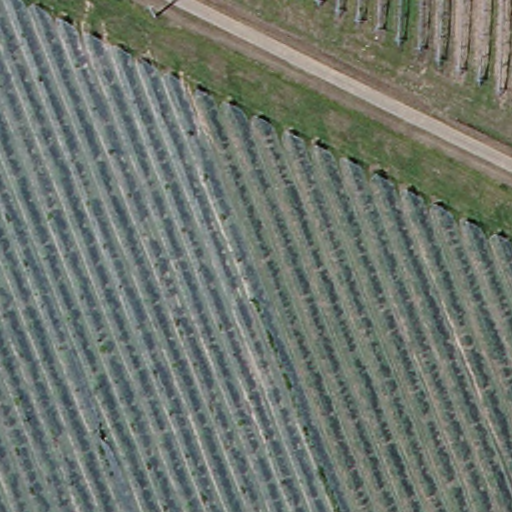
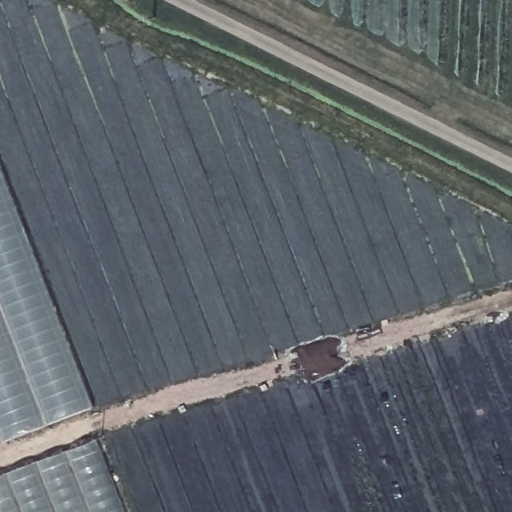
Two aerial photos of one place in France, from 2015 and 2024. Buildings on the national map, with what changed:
new [(95,406),(5,442),(0,429),(0,159),(95,406)]
new [(100,438),(129,512),(0,512),(0,477),(100,438)]

